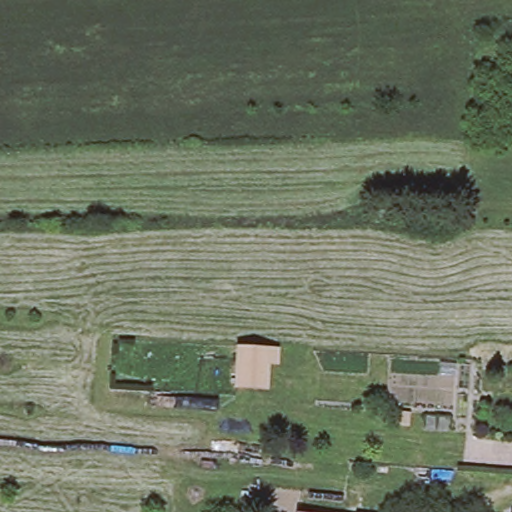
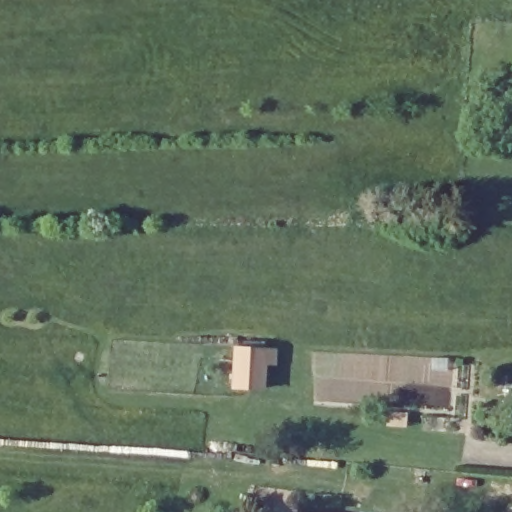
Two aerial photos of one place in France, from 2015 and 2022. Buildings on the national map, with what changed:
unchanged [(278,349),(278,366),(269,366),(268,391),(234,390),(235,347),(278,349)]

